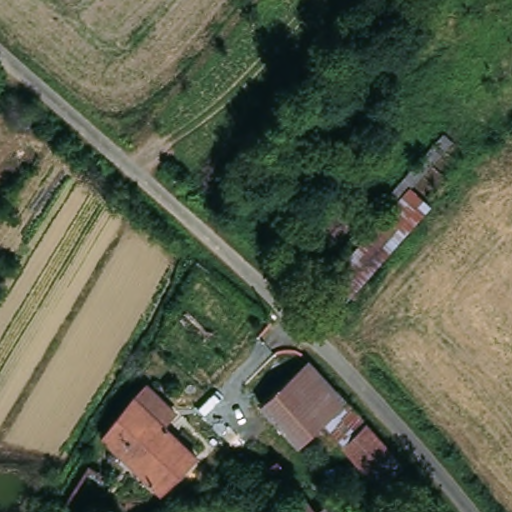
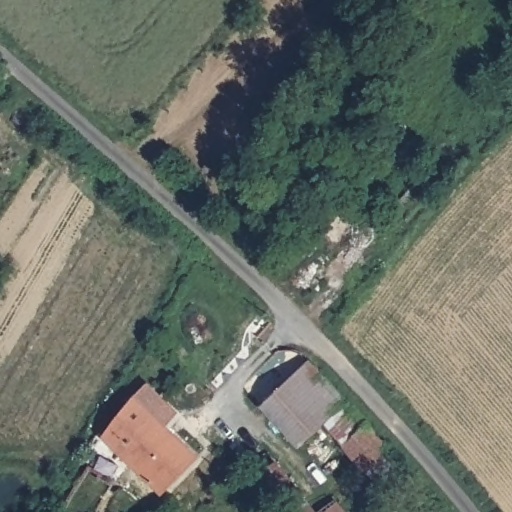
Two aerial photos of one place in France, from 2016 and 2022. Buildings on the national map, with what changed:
unchanged [(329,271),(457,130),(463,136),(420,184),(336,278),(329,271)]
unchanged [(336,278),(420,184),(440,201),(356,296),(336,278)]
unchanged [(330,383),(360,417),(386,446),(399,462),(375,485),(317,421),(293,443),(254,400),(303,355),(330,383)]
unchanged [(132,396),(145,384),(155,393),(175,412),(162,425),(196,457),(161,493),(102,436),(132,396)]
unchanged [(288,512),(258,476),(276,461),(318,512),(288,512)]
unchanged [(346,512),(318,512),(335,498),(346,512)]

